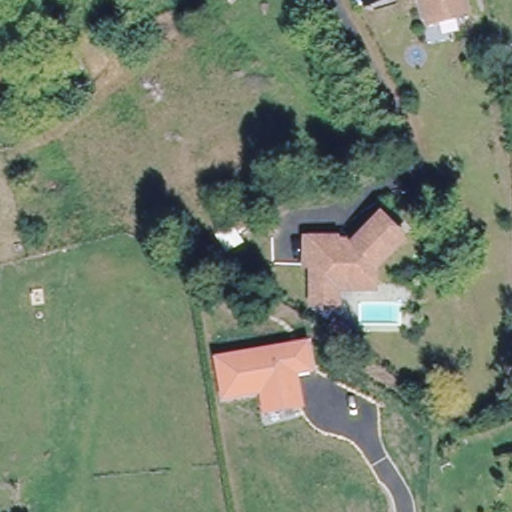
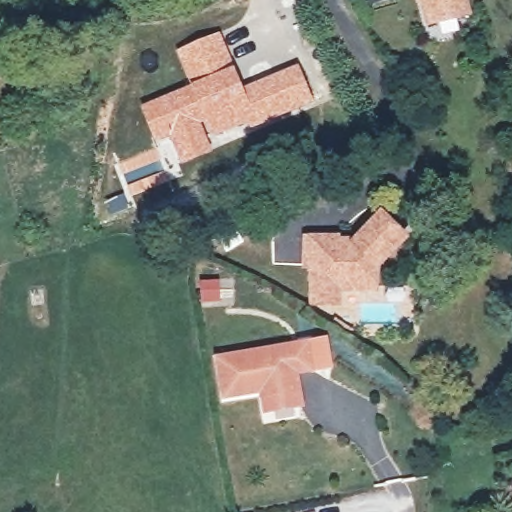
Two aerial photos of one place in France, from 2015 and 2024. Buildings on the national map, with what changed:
unchanged [(431,19),(426,0),(470,0),(472,8),(431,19)]
new [(189,85),(175,49),(221,31),(244,86),(299,64),(315,102),(250,129),(210,139),(214,151),(179,165),(170,138),(156,143),(140,105),(189,85)]
new [(158,145),(171,178),(132,195),(118,162),(158,145)]
unchanged [(320,297),(320,282),(320,259),(321,233),(342,234),(342,237),(348,237),(355,245),(388,213),(410,237),(382,264),(382,284),(345,283),(345,298),(320,297)]
unchanged [(267,411),(265,398),(264,390),(226,396),(220,357),(310,342),(315,370),(299,373),(302,393),(304,405),(267,411)]

